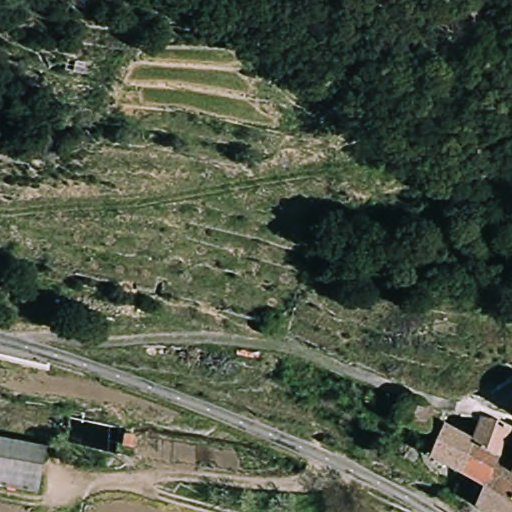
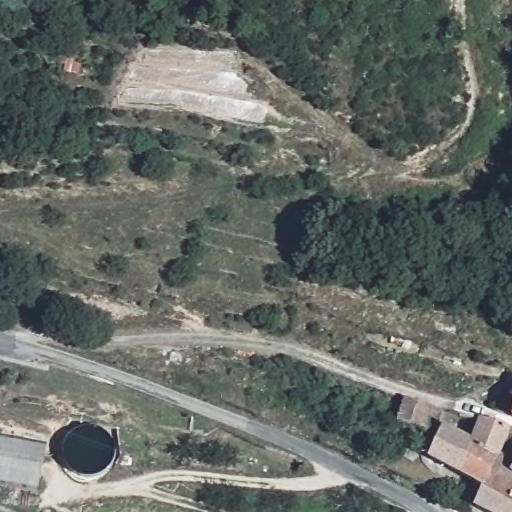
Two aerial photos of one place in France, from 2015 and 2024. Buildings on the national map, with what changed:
unchanged [(405,397),(433,406),(429,430),(398,418),(405,397)]
unchanged [(458,423),(450,420),(441,417),(445,409),(461,414),(458,423)]
unchanged [(442,424),(472,439),(481,420),(483,417),(512,426),(512,447),(511,447),(504,444),(498,454),(496,459),(483,486),(460,472),(459,471),(430,456),(442,424)]
unchanged [(45,442),(36,495),(0,489),(0,435),(45,442)]
unchanged [(483,486),(496,459),(504,461),(512,464),(512,512),(488,512),(476,506),(483,486)]

